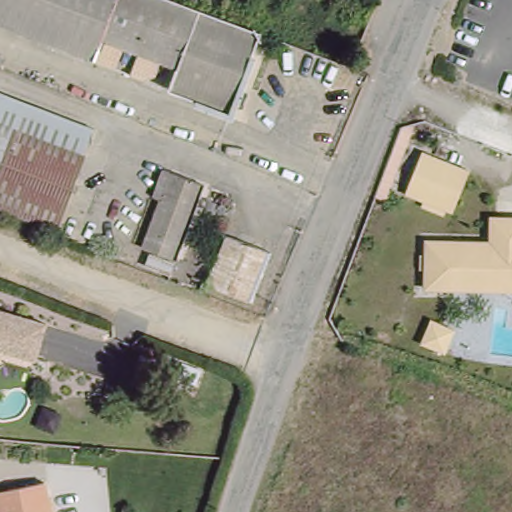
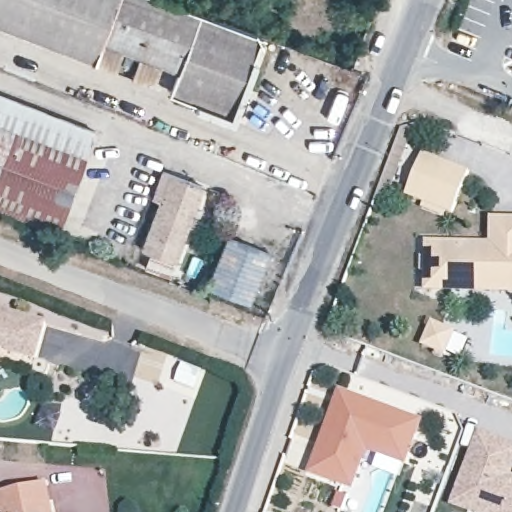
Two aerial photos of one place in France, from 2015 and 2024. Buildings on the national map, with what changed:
unchanged [(230,114),(170,91),(178,69),(102,40),(93,60),(0,25),(0,0),(168,0),(260,36),(230,114)]
unchanged [(368,54),(362,68),(352,64),(359,49),(368,54)]
unchanged [(95,130),(57,233),(0,211),(0,93),(95,130)]
unchanged [(427,155),(475,173),(458,215),(412,197),(427,155)]
unchanged [(175,255),(142,243),(160,194),(155,193),(163,168),(169,170),(203,183),(175,255)]
unchanged [(493,217),(512,217),(512,294),(432,294),(429,239),(493,240),(493,217)]
unchanged [(211,286),(228,239),(272,255),(255,302),(211,286)]
unchanged [(150,251),(174,260),(170,272),(146,262),(150,251)]
unchanged [(45,328),(35,364),(0,353),(0,315),(45,328)]
new [(430,319),(455,331),(444,357),(418,345),(430,319)]
new [(368,451),(352,489),(312,474),(339,405),(343,394),(347,396),(422,425),(413,449),(407,466),(368,451)]
new [(512,476),(512,512),(466,512),(448,505),(477,431),(512,443),(512,476)]
unchanged [(47,480),(53,512),(5,512),(5,511),(0,512),(0,489),(47,480)]
new [(341,509),(332,506),(337,492),(347,495),(341,509)]

